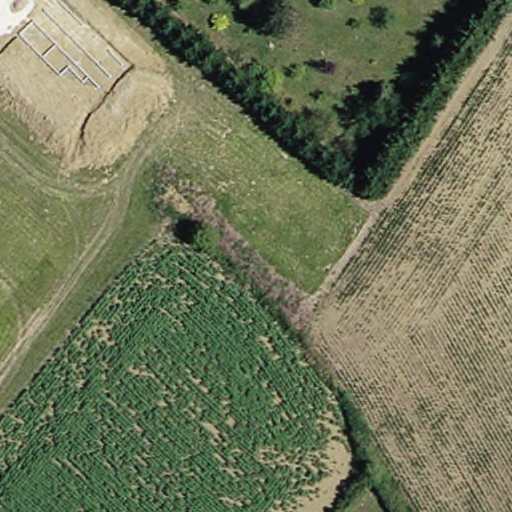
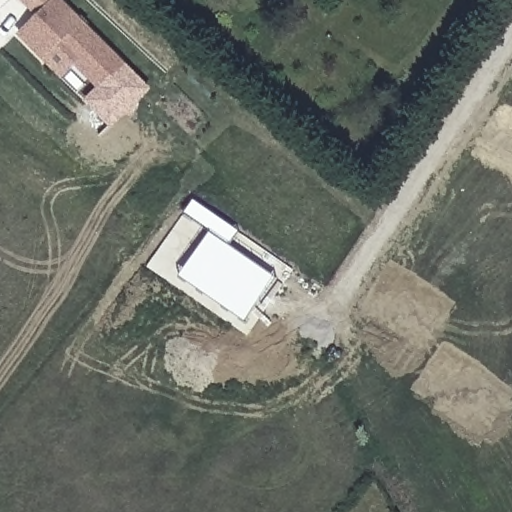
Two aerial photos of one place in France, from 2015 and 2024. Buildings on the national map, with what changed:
new [(98,91),(57,49),(42,62),(16,35),(52,0),(63,0),(127,65),(98,91)]
new [(19,0),(52,0),(34,17),(19,0)]
new [(57,49),(75,67),(60,80),(42,62),(57,49)]
new [(109,129),(82,101),(96,89),(98,91),(127,65),(151,89),(109,129)]
new [(230,245),(277,278),(245,323),(180,277),(210,232),(184,215),(193,200),(239,232),(230,245)]

